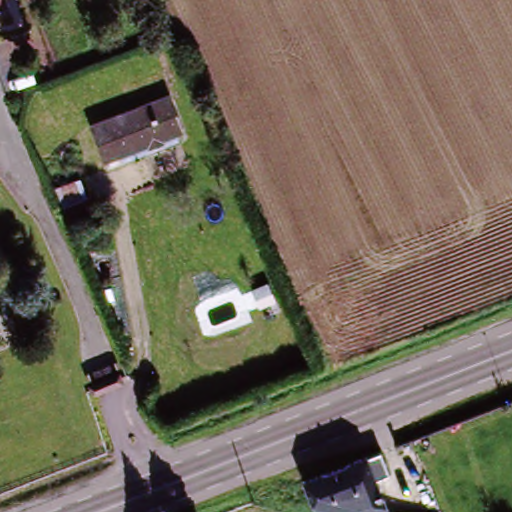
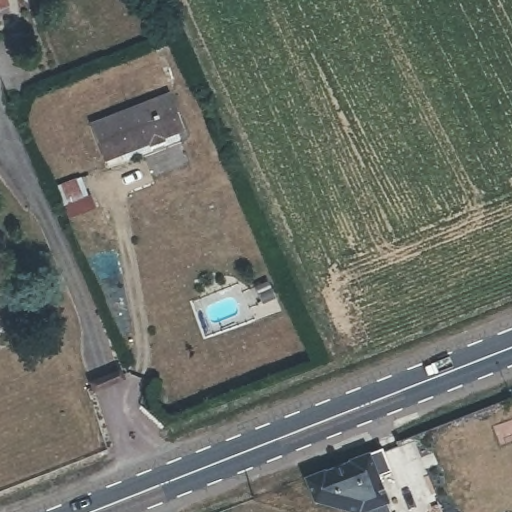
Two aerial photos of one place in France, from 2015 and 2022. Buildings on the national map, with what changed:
unchanged [(164,93),(178,126),(171,129),(176,142),(121,163),(115,152),(101,158),(87,125),(164,93)]
unchanged [(418,512),(360,512),(316,501),(306,475),(366,451),(385,444),(393,465),(375,473),(389,505),(418,512)]

